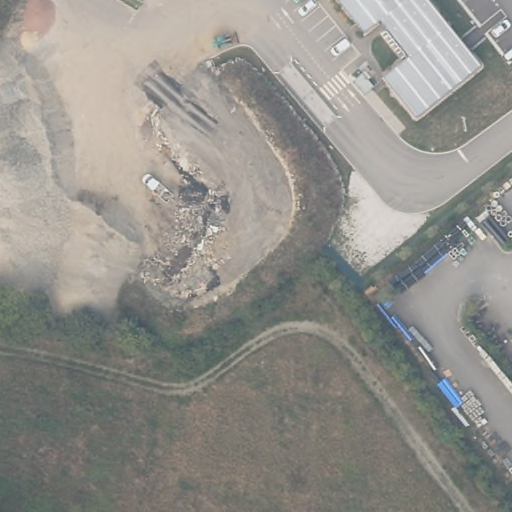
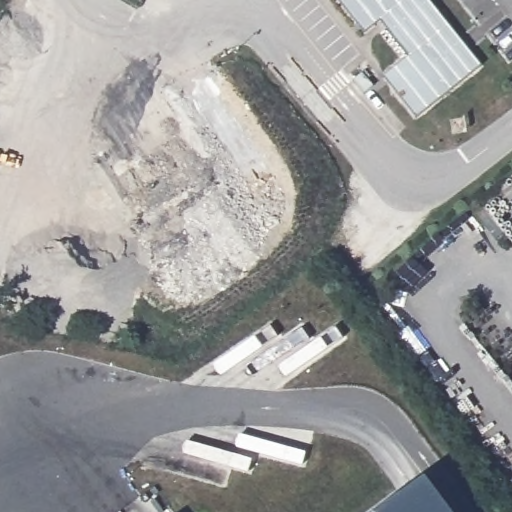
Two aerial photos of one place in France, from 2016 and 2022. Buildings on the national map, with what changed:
unchanged [(481,65),(417,117),(385,76),(410,55),(381,19),(365,32),(340,0),(429,0),(481,65)]
new [(451,512),(379,512),(426,477),(451,512)]

